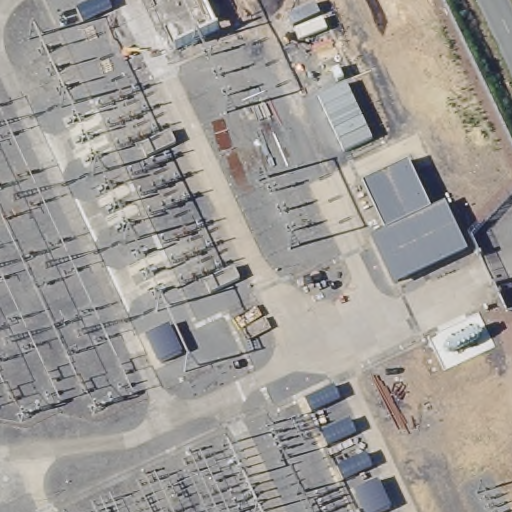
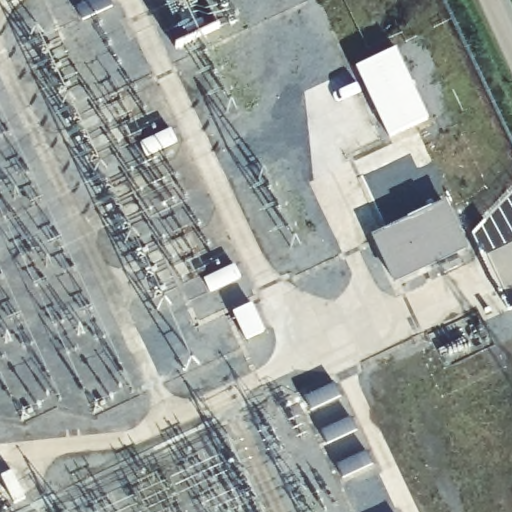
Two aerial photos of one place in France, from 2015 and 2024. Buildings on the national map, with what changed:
new [(397,50),(429,119),(389,138),(356,68),(397,50)]
unchanged [(407,160),(432,211),(444,204),(465,246),(394,279),(372,237),(386,230),(360,181),(407,160)]

